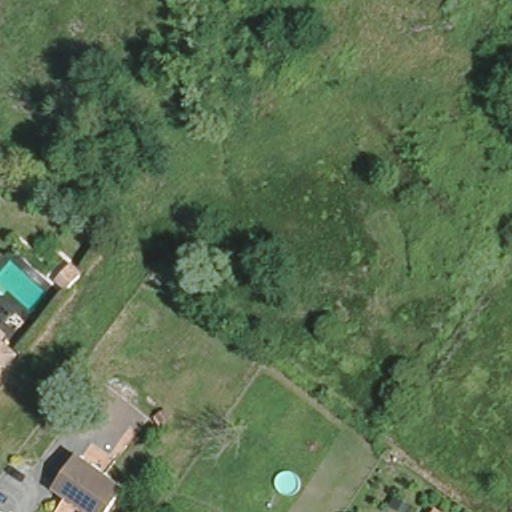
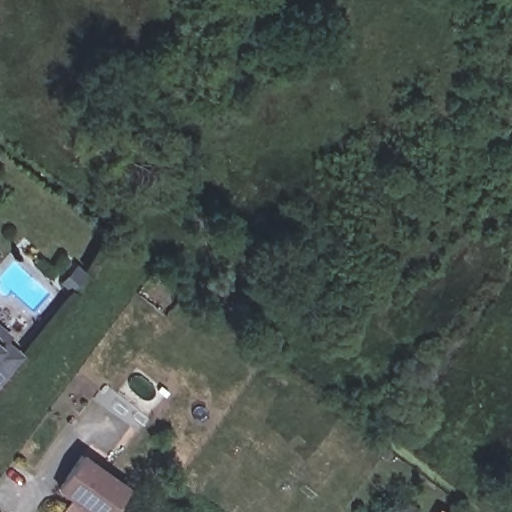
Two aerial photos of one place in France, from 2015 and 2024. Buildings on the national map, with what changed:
unchanged [(5,333),(20,345),(0,372),(0,321),(9,328),(5,333)]
unchanged [(96,512),(59,484),(82,451),(130,487),(112,512),(96,512)]
unchanged [(458,512),(431,512),(440,497),(458,512)]

